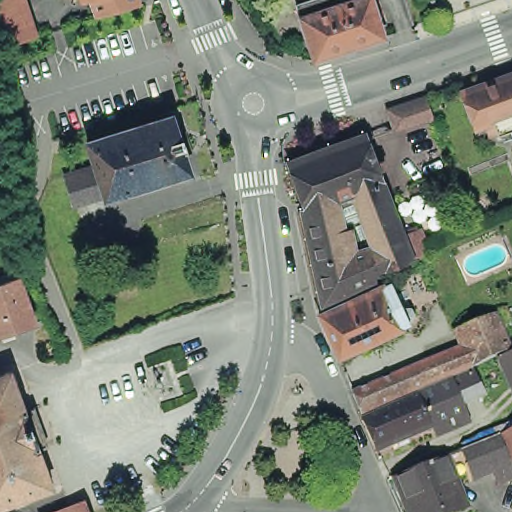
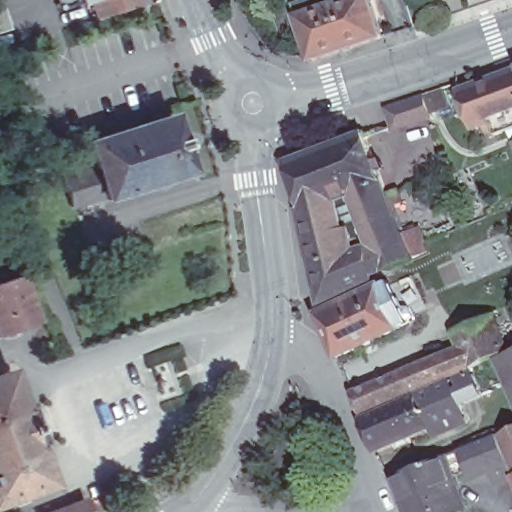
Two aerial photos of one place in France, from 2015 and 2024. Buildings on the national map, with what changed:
unchanged [(20,4),(0,10),(0,0),(19,0),(20,4)]
unchanged [(83,2),(83,0),(89,0),(83,2)]
unchanged [(98,20),(92,0),(139,0),(142,7),(112,16),(98,20)]
unchanged [(295,23),(291,11),(323,0),(332,0),(335,10),(364,0),(366,0),(379,43),(309,66),(295,23)]
unchanged [(0,51),(0,10),(20,4),(32,40),(0,51)]
unchanged [(512,72),(512,130),(498,136),(493,123),(475,129),(465,98),(462,91),(512,72)]
unchanged [(434,122),(397,135),(390,113),(430,99),(434,122)]
unchanged [(82,144),(106,136),(166,117),(184,176),(127,194),(100,202),(98,199),(90,168),(82,144)]
unchanged [(287,158),(345,136),(365,129),(384,178),(353,189),(340,195),(307,208),(305,209),(305,208),(303,204),(287,158)]
unchanged [(90,168),(98,199),(70,207),(68,207),(60,183),(57,184),(55,178),(61,176),(90,168)]
unchanged [(395,208),(403,230),(372,241),(353,189),(384,178),(389,191),(395,208)]
unchanged [(412,255),(374,271),(377,278),(321,303),(315,275),(307,243),(299,206),(303,204),(305,208),(305,209),(307,208),(340,195),(347,225),(350,224),(351,227),(356,248),(372,241),(403,230),(412,255)]
unchanged [(466,211),(470,223),(459,227),(455,215),(466,211)]
unchanged [(422,238),(427,249),(414,254),(405,229),(417,224),(422,238)]
unchanged [(15,279),(30,324),(0,334),(0,274),(11,271),(15,279)]
unchanged [(338,353),(330,336),(318,311),(328,306),(364,290),(380,282),(382,282),(390,279),(402,303),(410,303),(414,311),(408,318),(400,323),(401,324),(338,353)]
unchanged [(348,395),(395,375),(411,368),(422,363),(457,349),(450,332),(452,332),(488,316),(502,351),(465,370),(440,381),(430,385),(403,396),(390,401),(357,415),(348,395)]
unchanged [(503,356),(512,352),(512,375),(503,356)]
unchanged [(50,488),(0,506),(0,376),(10,372),(50,488)]
unchanged [(450,389),(468,381),(475,395),(456,403),(461,415),(427,430),(413,396),(446,382),(450,389)]
unchanged [(413,396),(427,430),(372,453),(358,421),(362,419),(377,413),(392,406),(413,396)]
unchanged [(511,477),(495,437),(512,430),(512,476),(511,477)]
unchanged [(392,477),(433,461),(439,458),(458,451),(465,448),(477,443),(492,437),(497,448),(510,478),(494,484),(488,471),(469,478),(467,472),(447,480),(458,506),(443,512),(405,512),(393,482),(392,477)]
unchanged [(511,477),(512,476),(512,479),(511,477)]
unchanged [(84,512),(43,512),(80,498),(84,512)]

